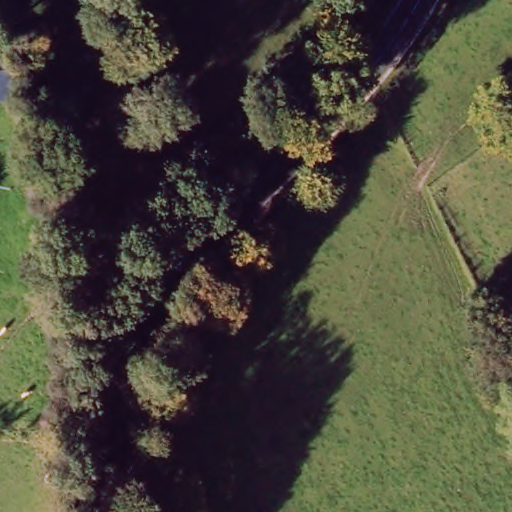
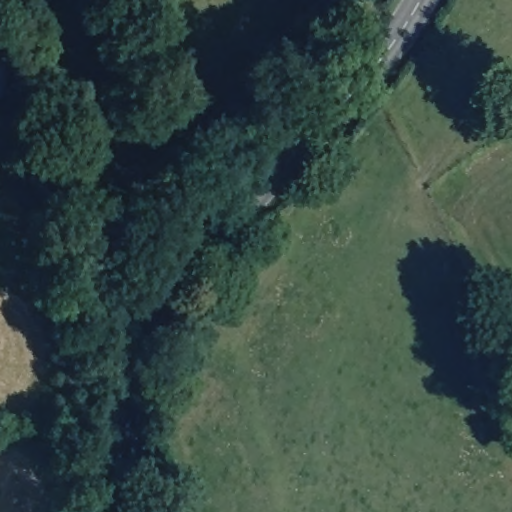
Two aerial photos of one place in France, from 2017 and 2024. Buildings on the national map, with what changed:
unchanged [(4,62),(4,100),(0,100),(0,62),(4,62)]

